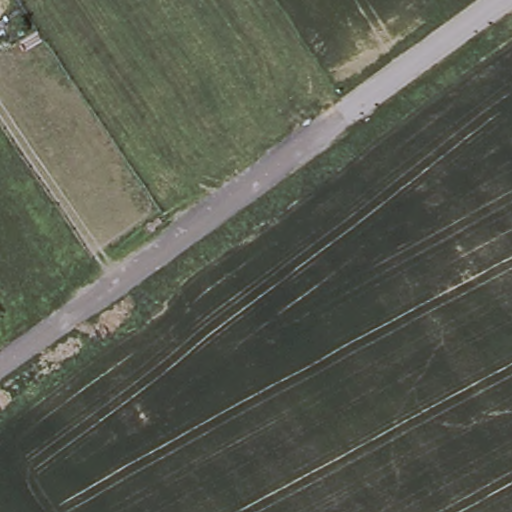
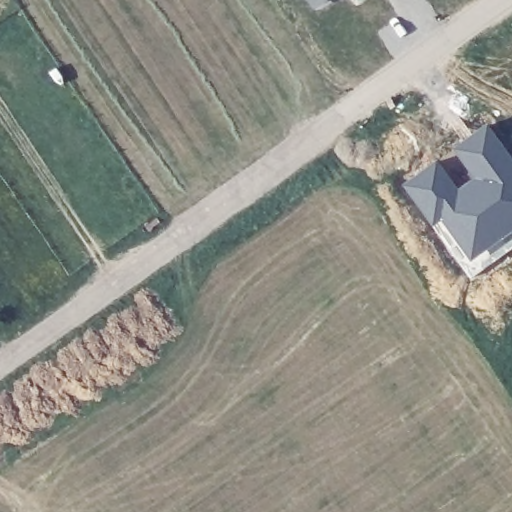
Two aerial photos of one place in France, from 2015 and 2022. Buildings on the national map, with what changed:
new [(314,0),(323,0),(316,5),(314,0)]
new [(436,160),(455,191),(475,179),(455,148),(487,125),(512,159),(512,233),(470,262),(441,219),(430,227),(403,185),(436,160)]

